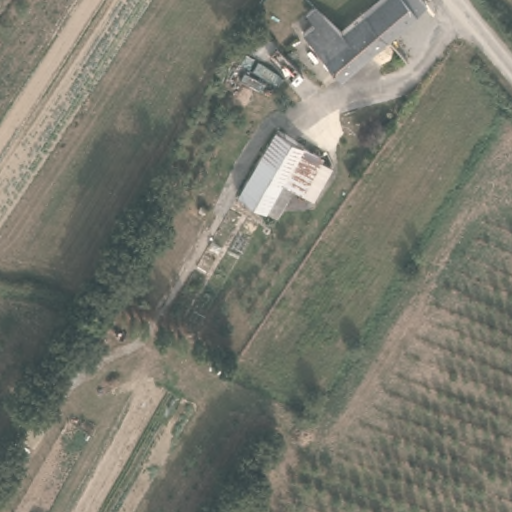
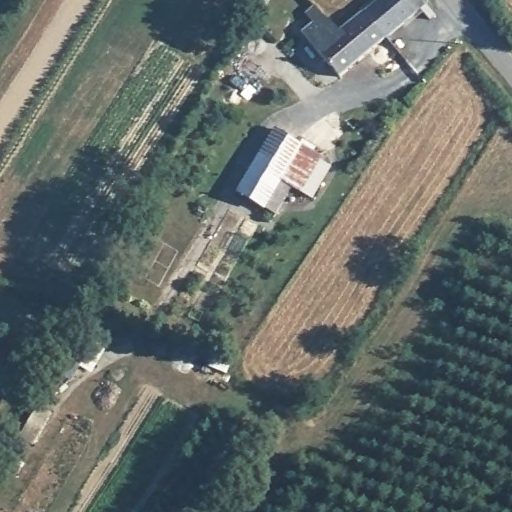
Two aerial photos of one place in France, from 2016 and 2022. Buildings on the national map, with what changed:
unchanged [(380,0),(429,0),(431,3),(388,37),(382,28),(365,12),(380,0)]
unchanged [(343,30),(365,12),(382,28),(388,37),(346,72),(341,74),(298,22),(318,3),(343,30)]
unchanged [(272,129),(317,154),(320,161),(328,165),(326,174),(311,197),(295,187),(290,186),(275,212),(263,207),(237,193),(272,129)]

